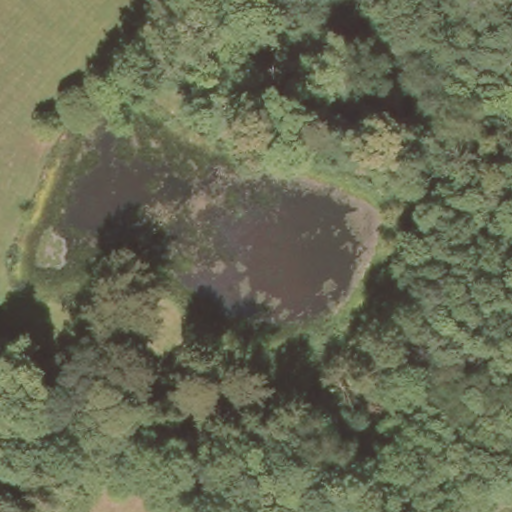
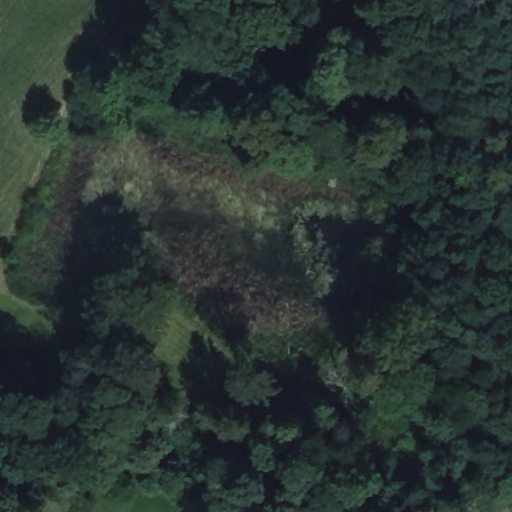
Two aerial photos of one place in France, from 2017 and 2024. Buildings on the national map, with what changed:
unchanged [(132,473),(103,451),(112,440),(140,462),(132,473)]

